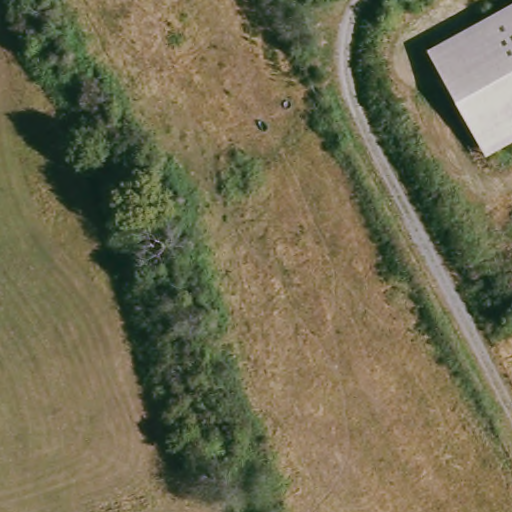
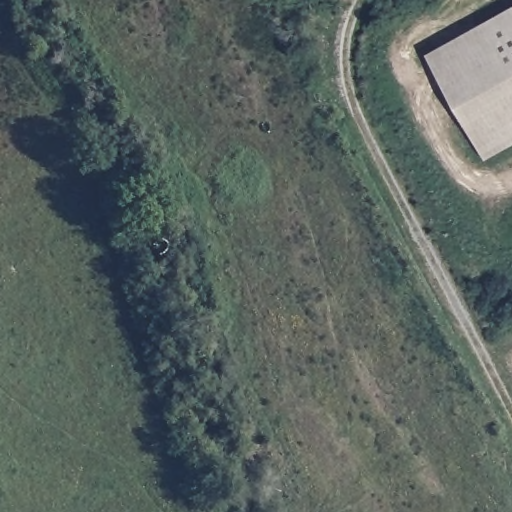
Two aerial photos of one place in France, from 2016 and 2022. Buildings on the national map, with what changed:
unchanged [(427,52),(512,5),(512,144),(486,158),(427,52)]

